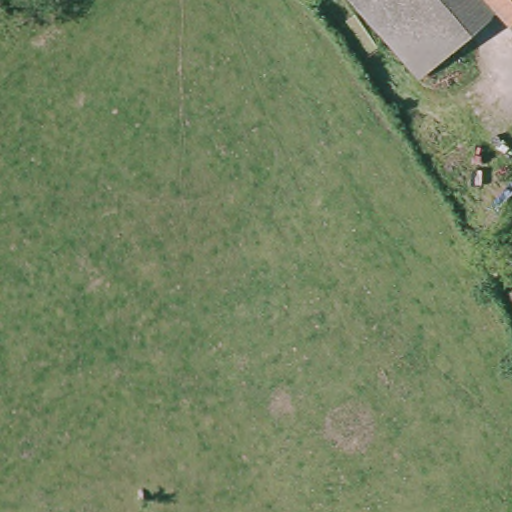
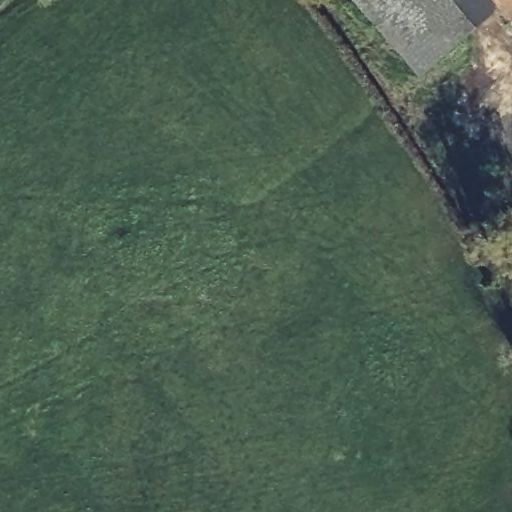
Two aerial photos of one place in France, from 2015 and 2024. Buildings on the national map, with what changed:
unchanged [(417,74),(357,0),(496,0),(502,8),(417,74)]
unchanged [(504,10),(502,8),(496,0),(512,0),(512,21),(504,10)]

